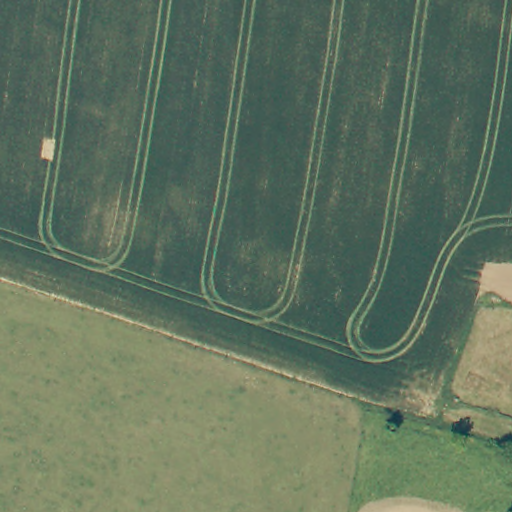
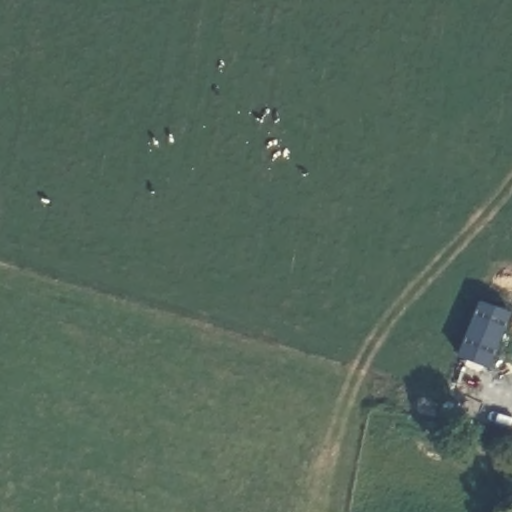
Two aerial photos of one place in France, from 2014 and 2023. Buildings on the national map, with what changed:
new [(490,372),(460,362),(482,304),(511,315),(490,372)]

